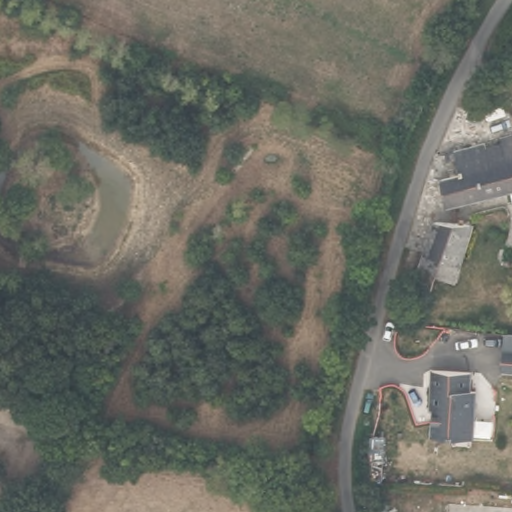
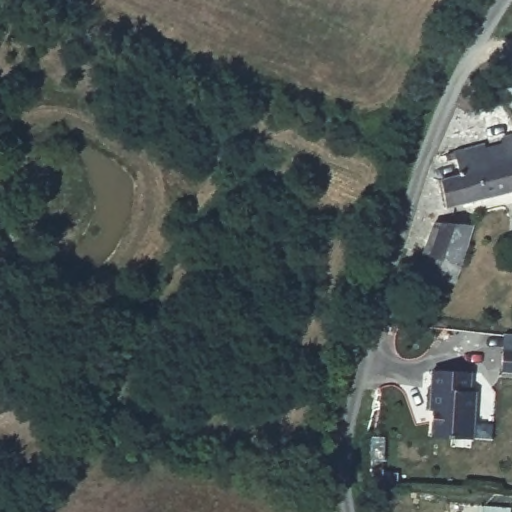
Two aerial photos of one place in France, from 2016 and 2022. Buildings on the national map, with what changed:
unchanged [(512,91),(511,91),(510,78),(497,79),(496,64),(512,62),(512,91)]
unchanged [(431,175),(461,173),(460,156),(444,157),(443,141),(474,139),(474,146),(492,145),(492,138),(512,138),(512,196),(433,204),(431,175)]
unchanged [(419,277),(425,260),(429,249),(440,218),(477,226),(460,270),(459,274),(446,270),(443,270),(437,283),(424,278),(419,277)]
unchanged [(512,375),(509,374),(511,354),(511,353),(512,354),(512,375)]
unchanged [(473,366),(472,386),(477,386),(474,433),(433,431),(435,404),(432,404),(434,365),(473,366)]

